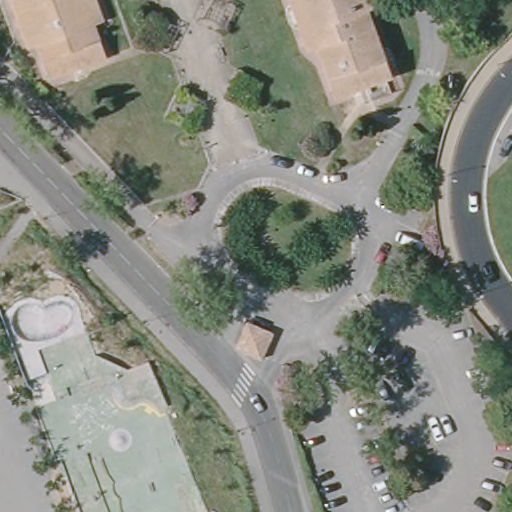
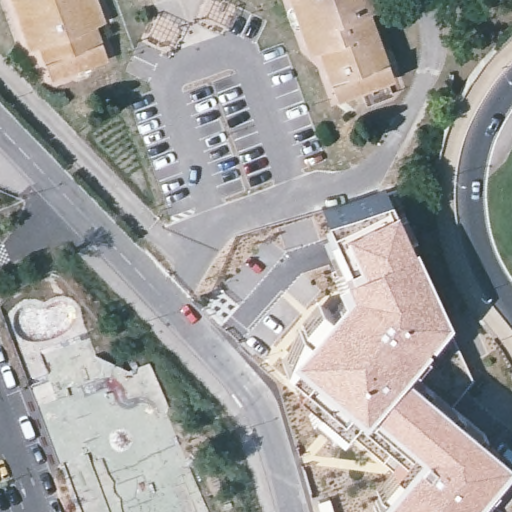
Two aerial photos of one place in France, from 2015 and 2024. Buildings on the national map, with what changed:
unchanged [(100,18),(93,20),(104,54),(69,66),(45,74),(35,42),(22,46),(7,0),(95,0),(100,18)]
unchanged [(311,43),(295,48),(280,0),(367,0),(369,4),(360,7),(383,76),(379,77),(384,93),(359,102),(354,86),(329,94),(311,43)]
new [(317,299),(324,304),(337,287),(329,269),(337,265),(335,262),(343,257),(328,222),(323,211),(386,189),(391,198),(418,250),(447,313),(442,318),(443,319),(440,323),(402,365),(358,418),(354,413),(340,428),(303,393),(307,389),(278,363),(292,334),(317,299)]
unchanged [(276,337),(267,360),(241,348),(251,326),(276,337)]
new [(405,452),(401,449),(400,452),(358,418),(402,365),(510,458),(464,512),(369,512),(383,484),(405,452)]

